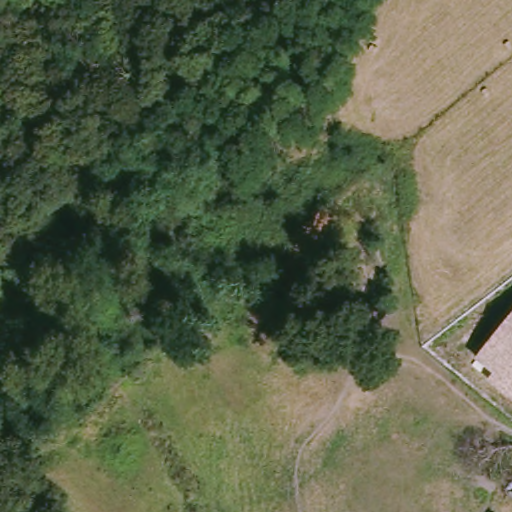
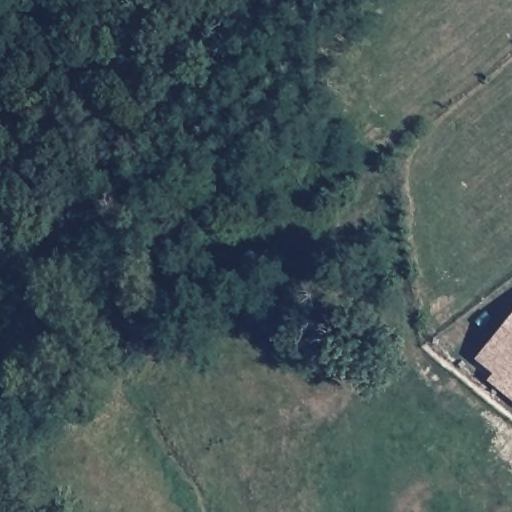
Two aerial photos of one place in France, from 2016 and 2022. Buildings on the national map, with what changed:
unchanged [(492,375),(475,360),(512,315),(512,403),(487,381),(492,375)]

